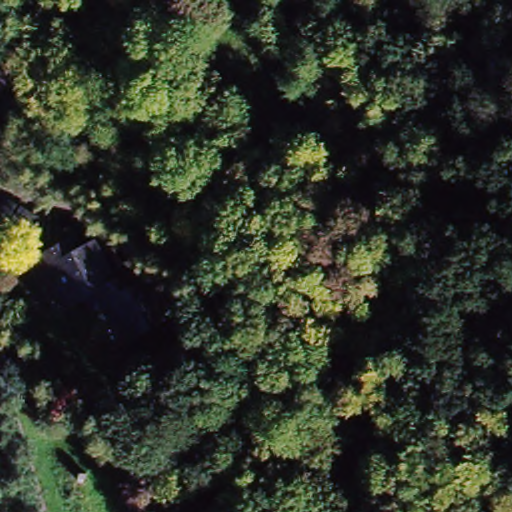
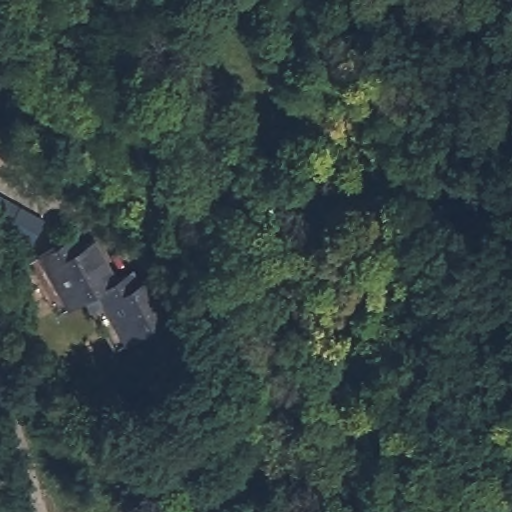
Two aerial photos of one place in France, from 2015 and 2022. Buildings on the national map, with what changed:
unchanged [(2,127),(0,133),(0,126),(2,127)]
unchanged [(45,222),(31,246),(0,227),(0,195),(45,222)]
unchanged [(75,234),(91,240),(102,234),(124,272),(138,265),(145,276),(157,270),(180,310),(118,345),(90,293),(61,310),(32,258),(75,234)]

